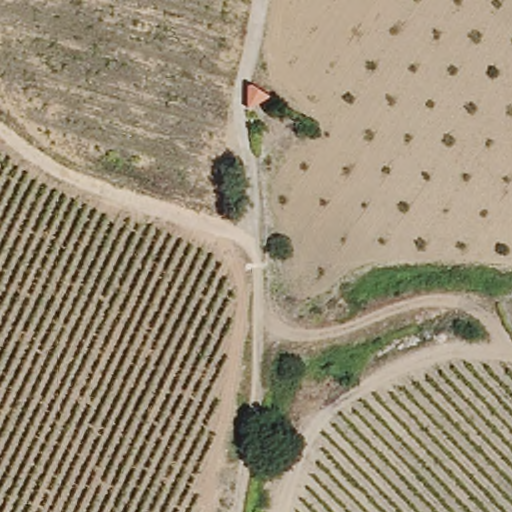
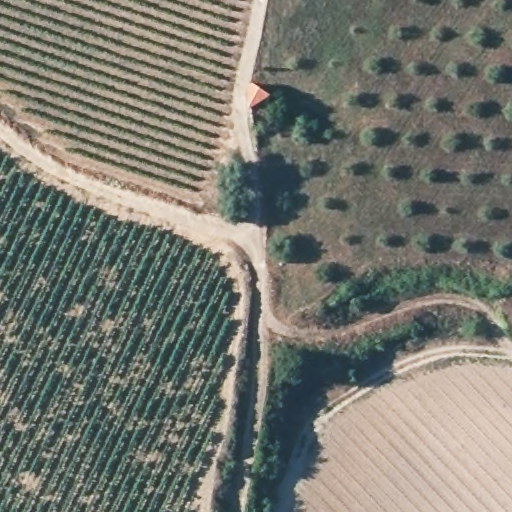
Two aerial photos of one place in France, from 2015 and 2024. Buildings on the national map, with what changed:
unchanged [(270,98),(265,113),(249,107),(252,85),(270,98)]

